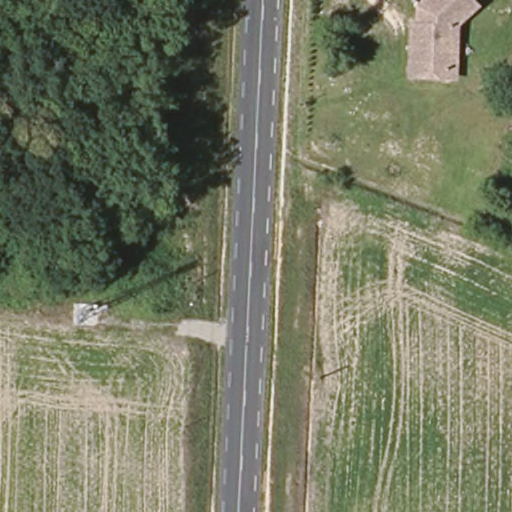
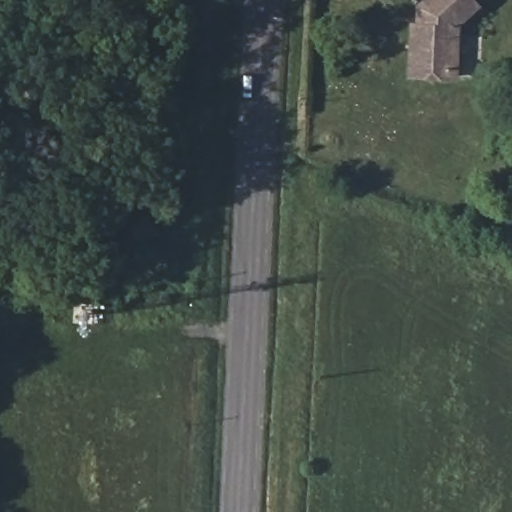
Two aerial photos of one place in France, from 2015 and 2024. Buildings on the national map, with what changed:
unchanged [(460,20),(440,35),(443,89),(397,90),(396,39),(402,39),(401,19),(424,0),(442,0),(460,20)]

